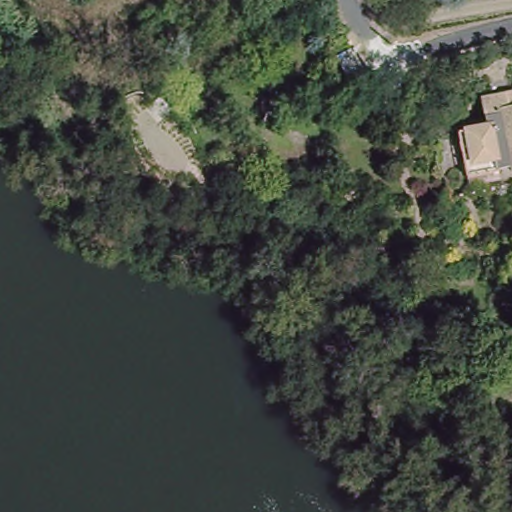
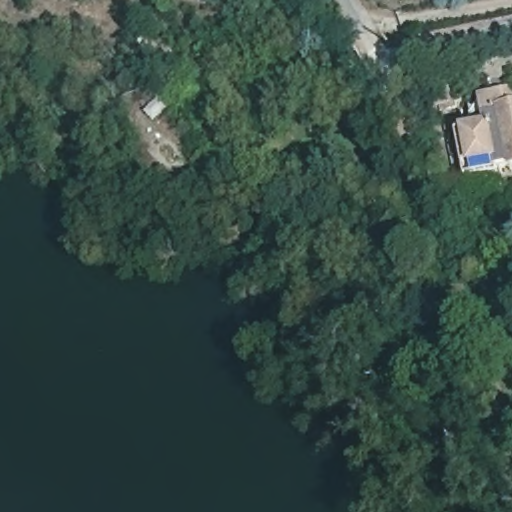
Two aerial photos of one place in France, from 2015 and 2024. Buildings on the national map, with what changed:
unchanged [(473,171),(464,125),(495,119),(489,92),(512,87),(512,157),(503,159),(504,165),(473,171)]

